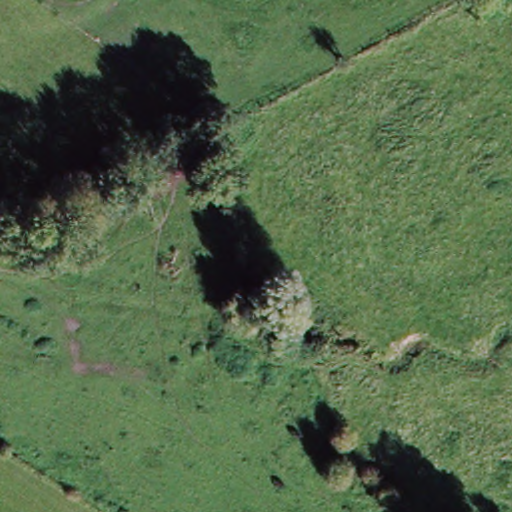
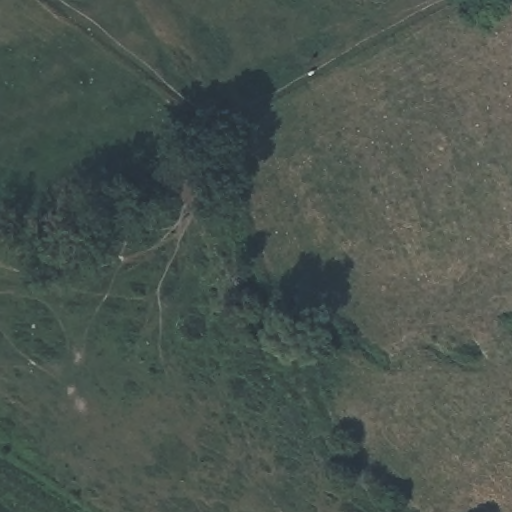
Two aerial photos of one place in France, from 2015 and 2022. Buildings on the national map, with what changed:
[]

